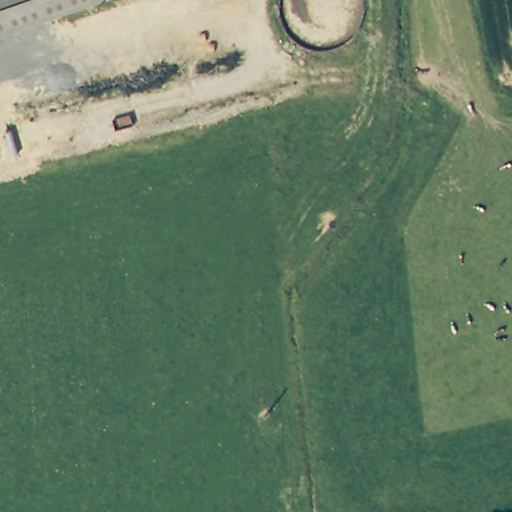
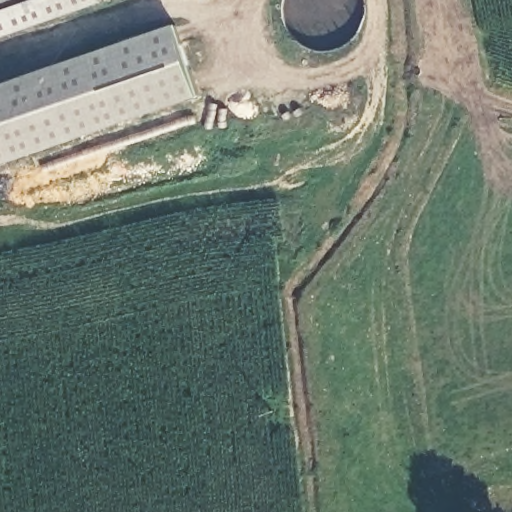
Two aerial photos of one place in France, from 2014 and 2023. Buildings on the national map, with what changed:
unchanged [(0,38),(0,0),(109,0),(0,38)]
new [(200,96),(0,165),(0,84),(174,24),(200,96)]

